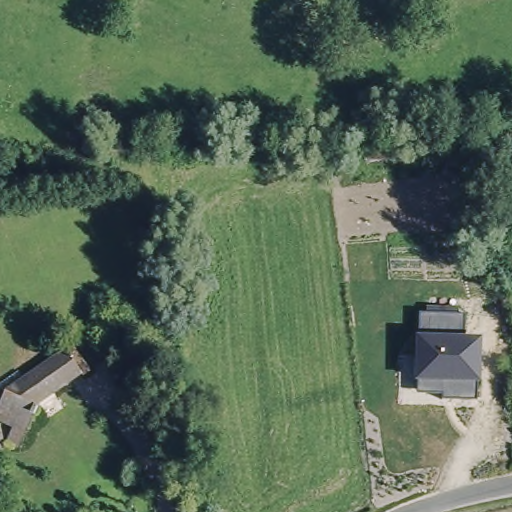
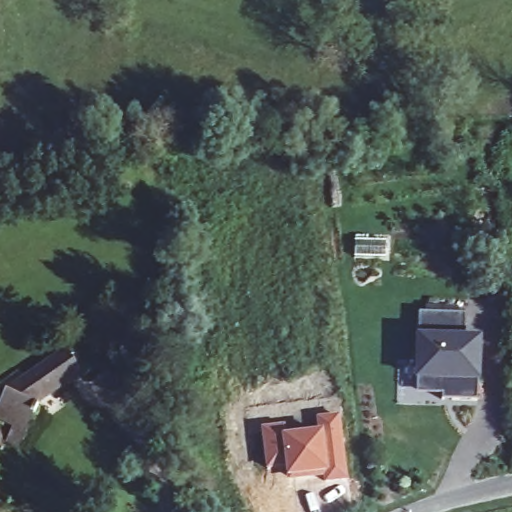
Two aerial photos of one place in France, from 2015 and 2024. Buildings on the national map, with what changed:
unchanged [(469,314),(467,339),(483,339),(479,404),(444,402),(444,395),(420,393),(420,380),(413,380),(415,334),(421,334),(422,311),(469,314)]
unchanged [(28,432),(0,421),(0,407),(7,389),(53,357),(67,347),(81,365),(66,375),(27,401),(39,406),(28,432)]
new [(287,435),(318,431),(315,419),(339,417),(348,481),(323,485),(322,478),(288,482),(287,477),(286,468),(267,472),(261,428),(285,426),(287,435)]

